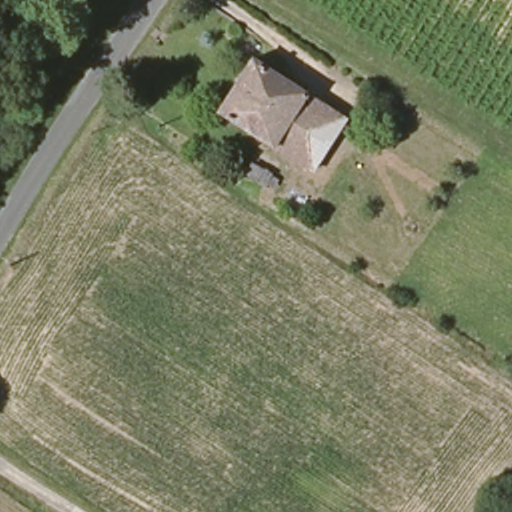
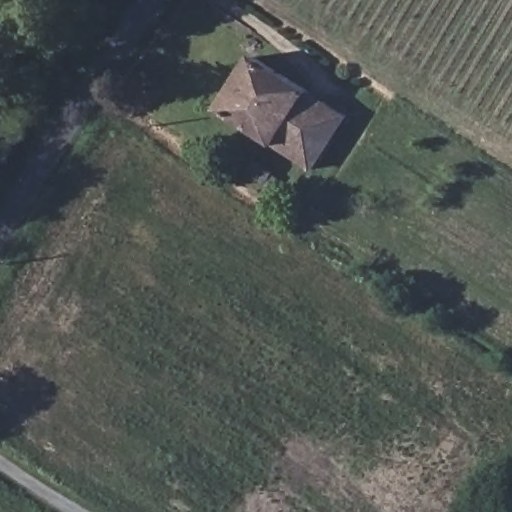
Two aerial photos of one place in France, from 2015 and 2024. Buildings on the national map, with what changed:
unchanged [(320,173),(224,117),(261,58),(353,114),(320,173)]

